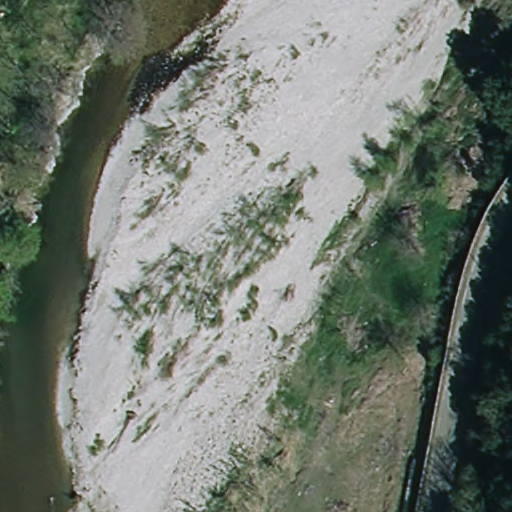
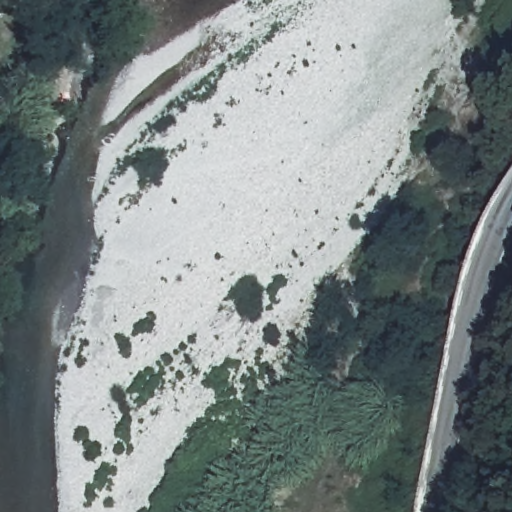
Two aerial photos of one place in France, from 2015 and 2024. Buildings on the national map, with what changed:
unchanged [(7,247),(6,264),(0,264),(0,246),(7,247)]

